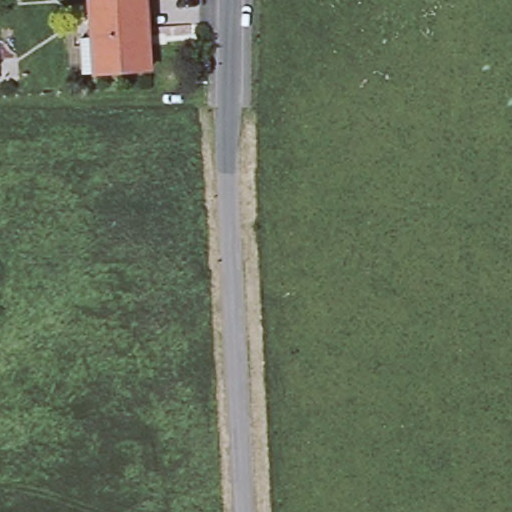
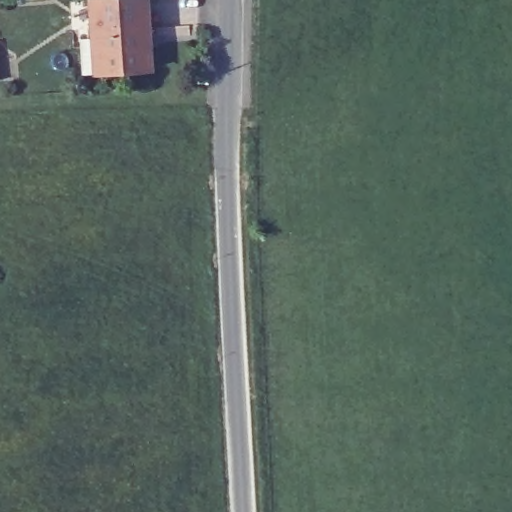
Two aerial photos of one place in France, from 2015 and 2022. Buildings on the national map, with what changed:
unchanged [(85,68),(82,31),(95,31),(92,0),(147,0),(150,37),(152,62),(85,68)]

